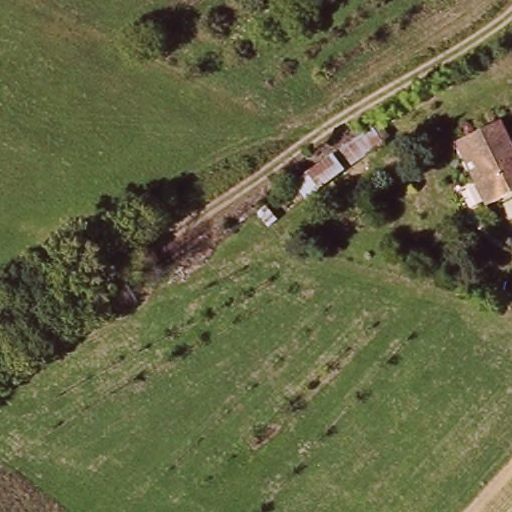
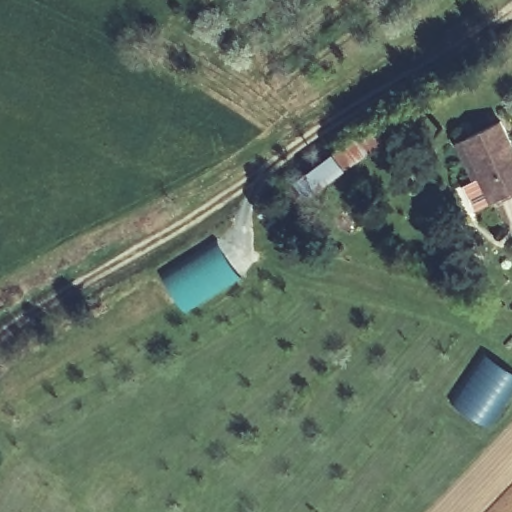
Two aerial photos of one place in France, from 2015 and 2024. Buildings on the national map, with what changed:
unchanged [(481,180),(461,145),(497,124),(512,150),(512,196),(497,205),(489,209),(474,184),(481,180)]
unchanged [(373,125),(386,143),(346,170),(319,190),(306,200),(294,182),(309,171),(334,154),(373,125)]
new [(240,278),(186,314),(162,276),(216,241),(240,278)]
new [(484,353),(512,372),(512,398),(490,430),(450,403),(484,353)]

